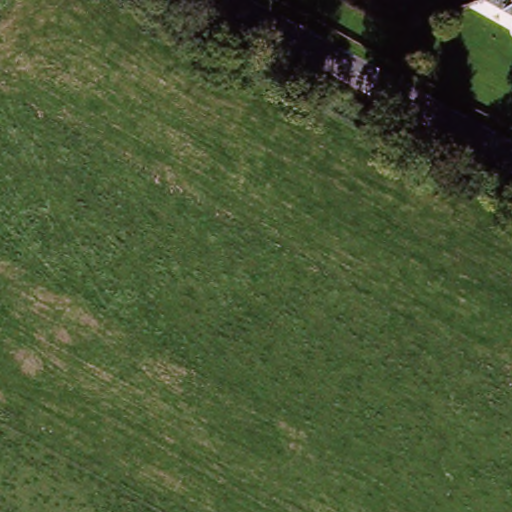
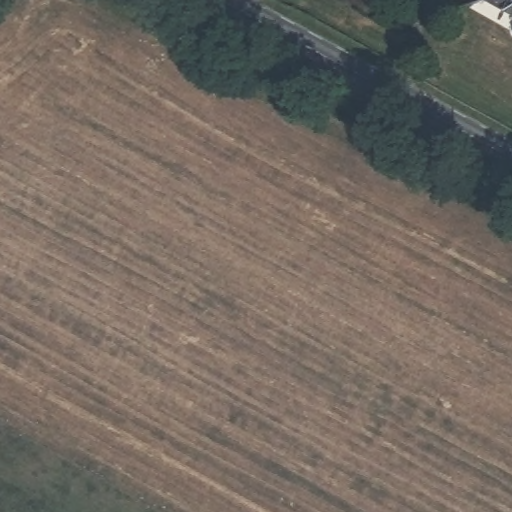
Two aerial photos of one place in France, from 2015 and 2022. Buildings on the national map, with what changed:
unchanged [(483,9),(488,0),(512,0),(512,24),(483,9)]

